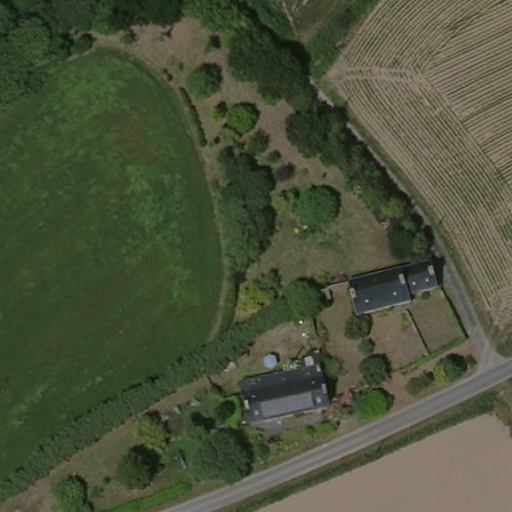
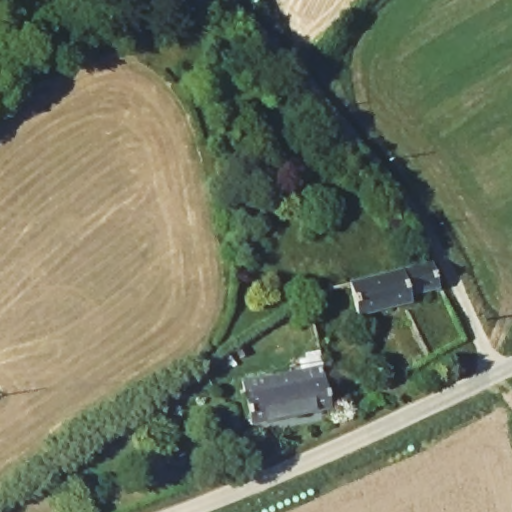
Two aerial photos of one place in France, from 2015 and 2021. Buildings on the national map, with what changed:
unchanged [(400,273),(423,266),(431,290),(407,297),(408,307),(398,309),(359,320),(349,288),(400,273)]
unchanged [(328,408),(326,408),(242,429),(232,401),(242,397),(239,381),(298,369),(316,368),(320,368),(328,408)]

